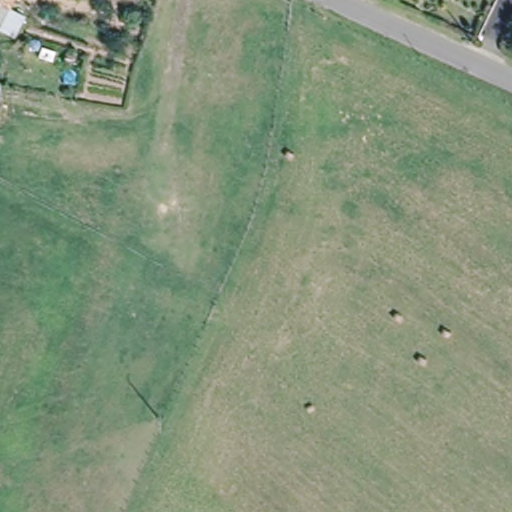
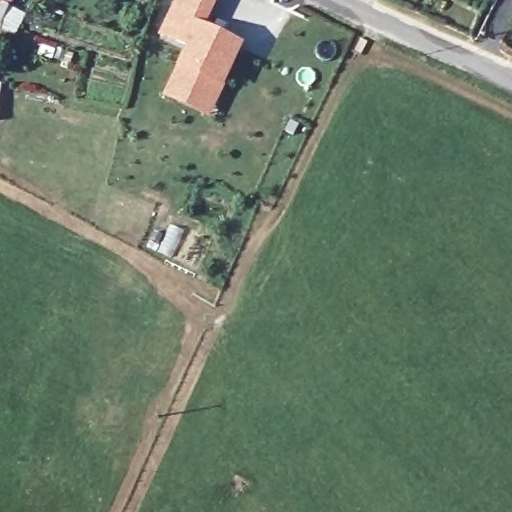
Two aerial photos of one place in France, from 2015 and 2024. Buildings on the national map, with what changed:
unchanged [(9,0),(0,17),(0,0),(9,0)]
new [(162,34),(179,0),(215,0),(200,30),(239,48),(215,100),(207,115),(167,96),(175,80),(190,48),(162,34)]

